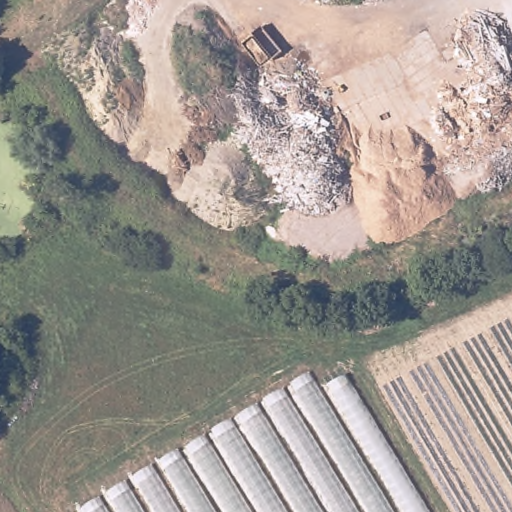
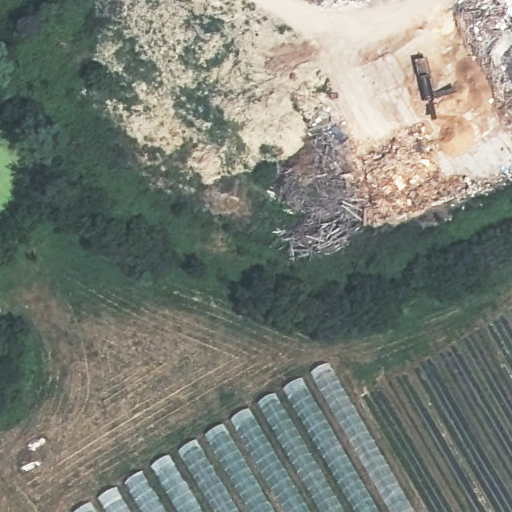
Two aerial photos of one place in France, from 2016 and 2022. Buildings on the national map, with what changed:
unchanged [(384,388),(512,315),(512,512),(456,512),(384,388)]

